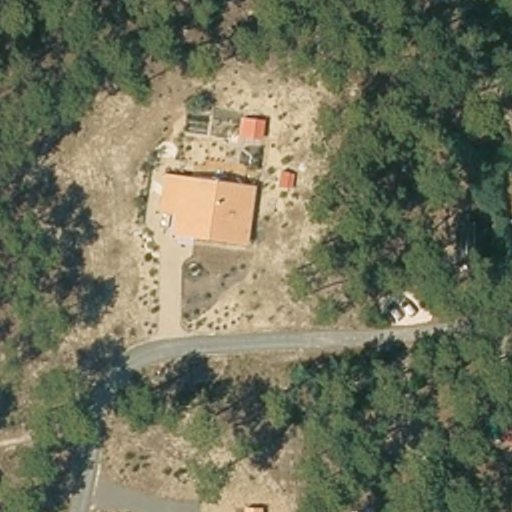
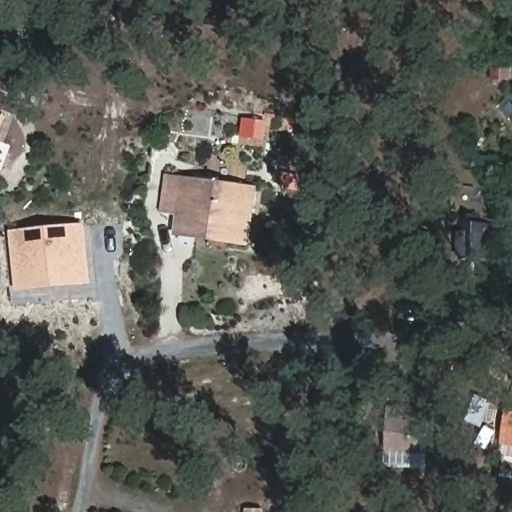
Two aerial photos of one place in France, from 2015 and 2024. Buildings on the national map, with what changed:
new [(7,118),(0,135),(0,115),(7,118)]
unchanged [(248,245),(174,235),(175,215),(162,213),(166,174),(258,187),(248,245)]
unchanged [(453,262),(450,219),(479,217),(480,225),(489,225),(492,259),(453,262)]
new [(88,223),(96,288),(17,295),(11,230),(88,223)]
unchanged [(385,448),(387,406),(430,408),(428,449),(385,448)]
unchanged [(507,410),(512,410),(512,442),(504,441),(507,410)]

